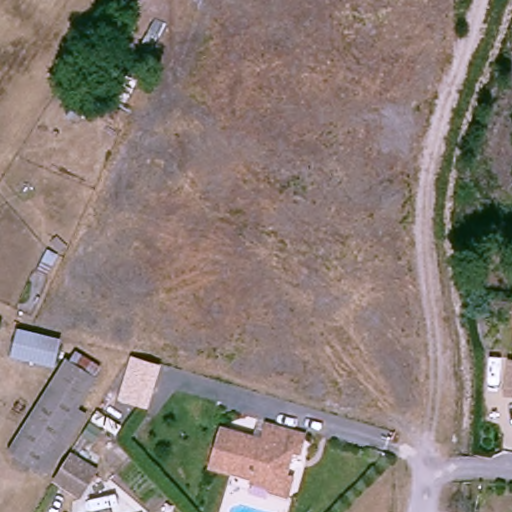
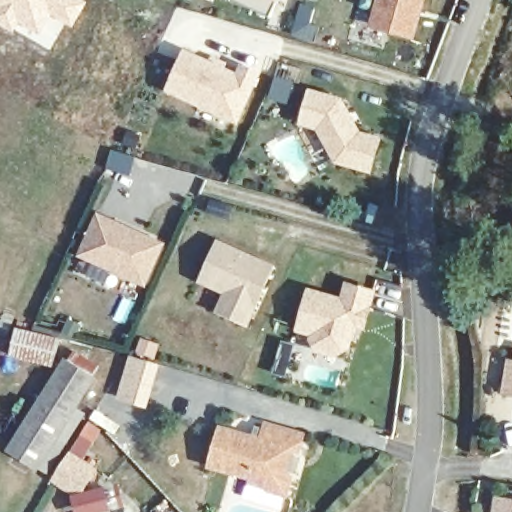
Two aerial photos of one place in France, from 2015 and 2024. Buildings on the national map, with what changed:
new [(73,30),(51,19),(36,44),(0,25),(0,0),(89,0),(73,30)]
new [(235,0),(280,0),(279,2),(276,0),(269,15),(235,0)]
new [(415,39),(370,26),(377,0),(425,0),(415,39)]
new [(184,50),(236,72),(241,64),(260,72),(238,124),(165,90),(184,50)]
new [(336,162),(318,130),(299,125),(309,89),(341,97),(360,131),(381,138),(371,174),(336,162)]
new [(168,245),(147,288),(78,258),(98,213),(168,245)]
new [(218,240),(272,265),(246,322),(218,309),(226,290),(201,279),(218,240)]
new [(309,289),(342,298),(347,282),(373,290),(363,325),(353,322),(347,346),(334,353),(318,348),(312,337),(313,332),(298,327),(309,289)]
unchanged [(16,329),(60,337),(54,370),(11,360),(16,329)]
unchanged [(512,355),(512,397),(501,395),(505,363),(511,363),(512,355)]
new [(161,366),(149,410),(119,401),(130,357),(161,366)]
unchanged [(49,469),(18,455),(61,361),(90,375),(49,469)]
unchanged [(283,495),(265,490),(266,482),(207,468),(217,430),(258,440),(263,425),(301,434),(297,450),(287,450),(281,475),(288,476),(283,495)]
unchanged [(101,467),(79,503),(52,487),(76,451),(101,467)]

